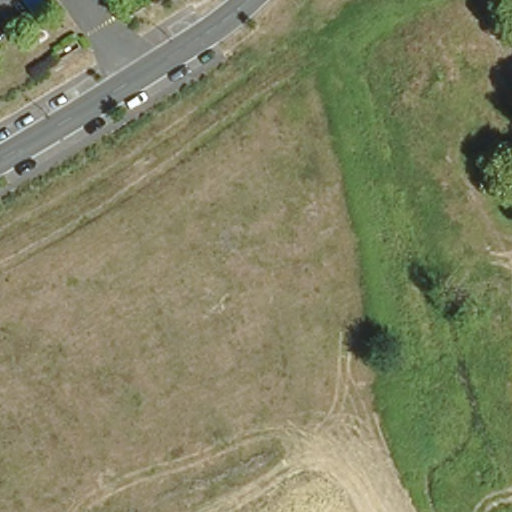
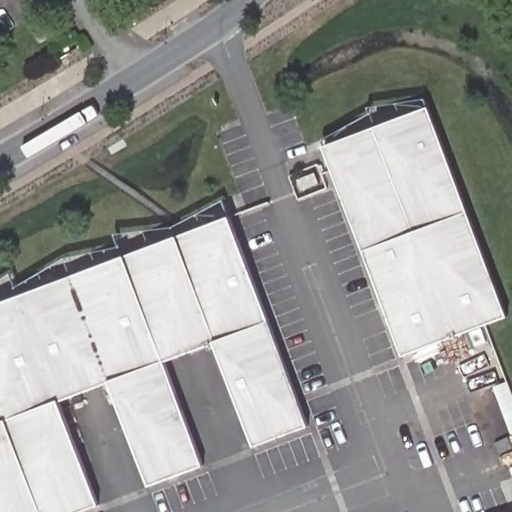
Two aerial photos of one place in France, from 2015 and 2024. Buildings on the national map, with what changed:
new [(429,106),(509,317),(403,357),(322,146),(429,106)]
new [(230,216),(308,427),(254,447),(215,343),(165,362),(203,466),(149,487),(109,382),(59,400),(99,506),(82,512),(0,512),(0,302),(230,216)]

